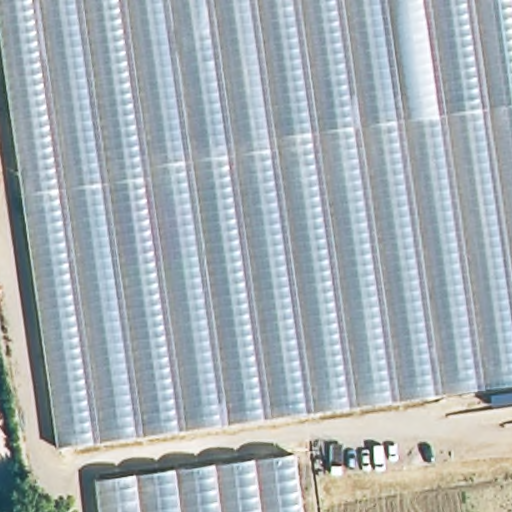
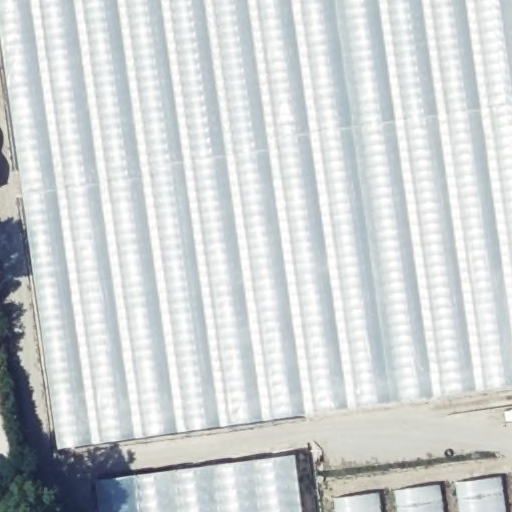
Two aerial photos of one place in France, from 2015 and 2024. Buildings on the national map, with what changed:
unchanged [(57,449),(0,43),(0,0),(512,0),(512,387),(57,449)]
unchanged [(91,481),(298,453),(305,512),(95,512),(91,481)]
new [(512,485),(512,512),(331,512),(328,498),(510,472),(512,485)]

